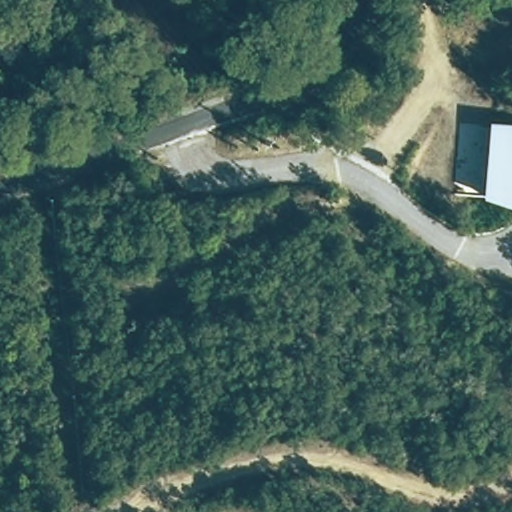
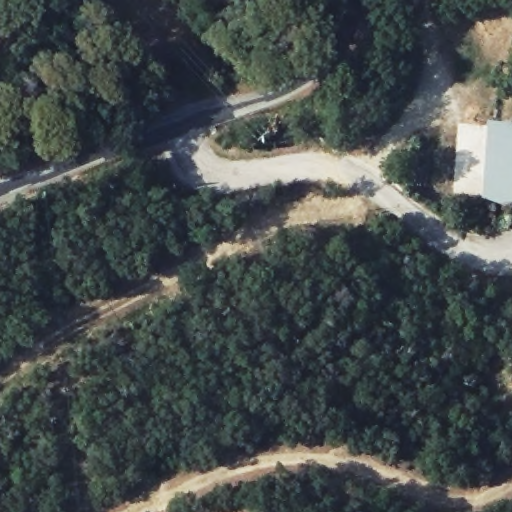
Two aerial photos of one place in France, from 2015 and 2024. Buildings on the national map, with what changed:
unchanged [(512,211),(482,199),(488,123),(512,124),(512,211)]

